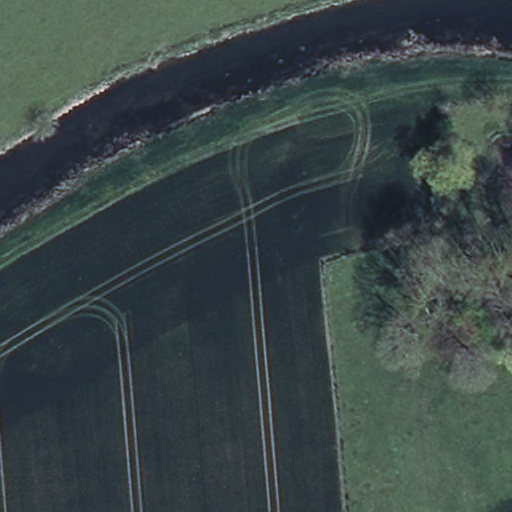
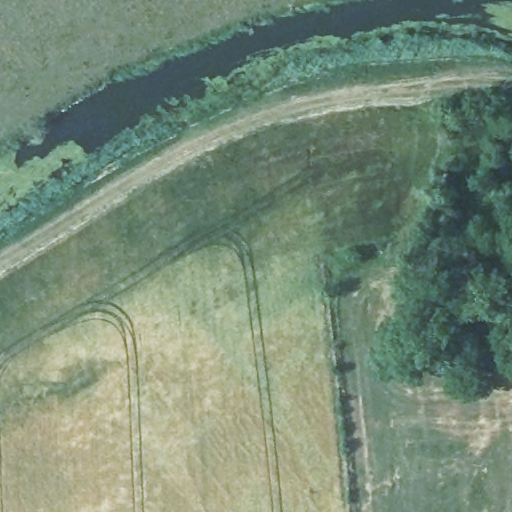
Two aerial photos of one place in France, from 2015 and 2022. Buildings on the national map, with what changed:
[]

